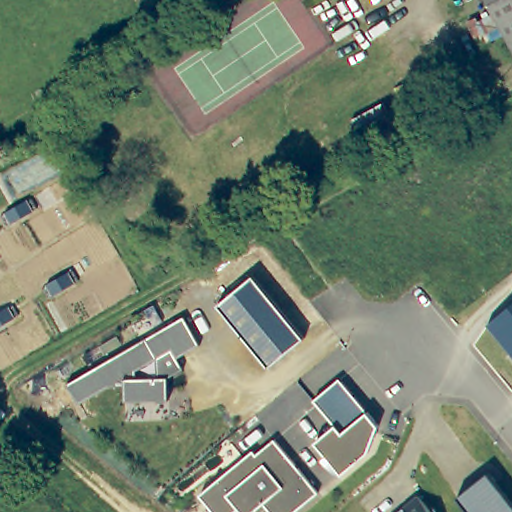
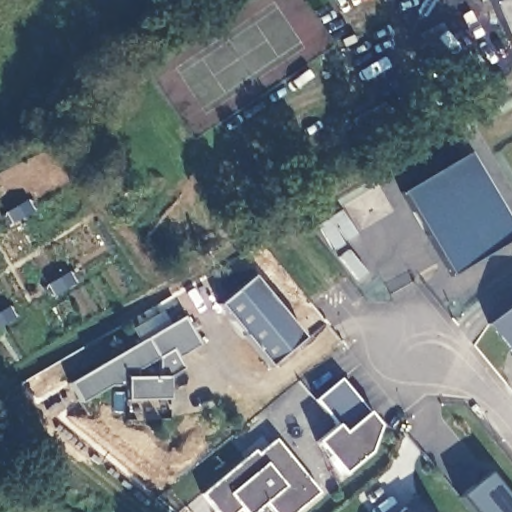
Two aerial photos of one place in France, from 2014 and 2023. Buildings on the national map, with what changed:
unchanged [(512,50),(487,0),(512,0),(512,50)]
new [(512,224),(512,240),(451,277),(401,192),(469,153),(512,224)]
unchanged [(215,309),(251,279),(303,342),(267,371),(215,309)]
unchanged [(512,304),(512,355),(486,325),(512,304)]
unchanged [(182,321),(198,349),(176,362),(182,373),(167,382),(168,405),(124,406),(124,391),(108,392),(78,409),(66,389),(182,321)]
unchanged [(313,403),(338,382),(366,415),(342,436),(335,427),(334,428),(313,403)]
unchanged [(334,428),(335,427),(342,436),(366,415),(377,428),(368,456),(341,477),(314,445),(334,428)]
unchanged [(256,458),(274,443),(318,496),(299,512),(268,512),(264,507),(258,512),(211,512),(199,499),(244,462),(253,454),(256,458)]
unchanged [(512,503),(512,512),(468,512),(456,498),(487,473),(512,503)]
unchanged [(401,512),(417,498),(428,512),(401,512)]

